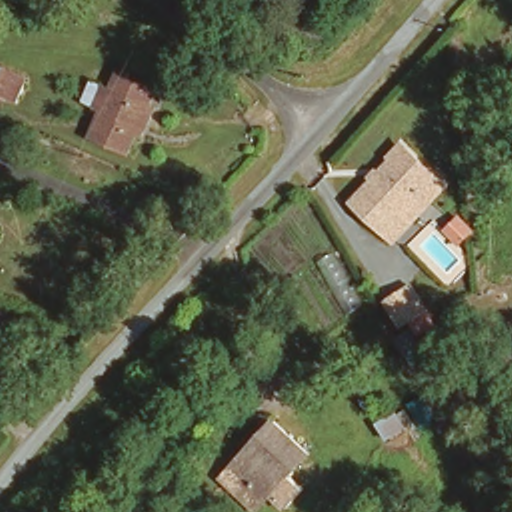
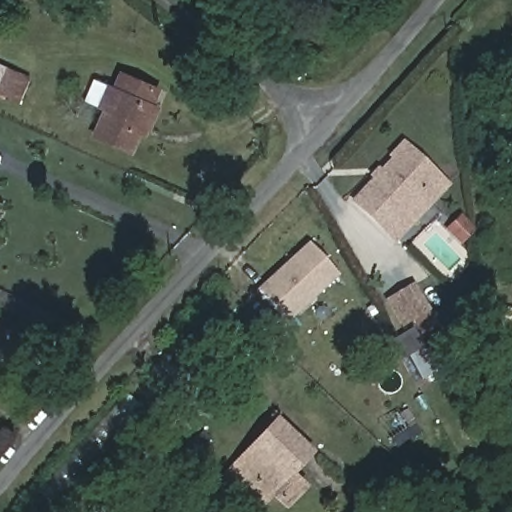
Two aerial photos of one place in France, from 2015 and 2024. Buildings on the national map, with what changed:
unchanged [(0,89),(0,63),(26,75),(17,96),(0,89)]
unchanged [(132,126),(125,145),(92,133),(102,106),(95,103),(80,97),(87,79),(104,84),(110,86),(116,69),(150,84),(145,96),(153,99),(145,119),(142,128),(132,126)]
unchanged [(392,239),(383,230),(353,198),(407,146),(438,178),(446,187),(392,239)]
new [(289,324),(259,291),(310,244),(340,277),(289,324)]
unchanged [(413,284),(425,305),(399,320),(388,299),(413,284)]
unchanged [(428,356),(413,366),(391,342),(412,330),(428,356)]
unchanged [(414,421),(389,439),(378,423),(396,410),(398,414),(406,409),(414,421)]
unchanged [(300,465),(258,507),(228,477),(223,472),(253,443),(265,430),(300,465)]

